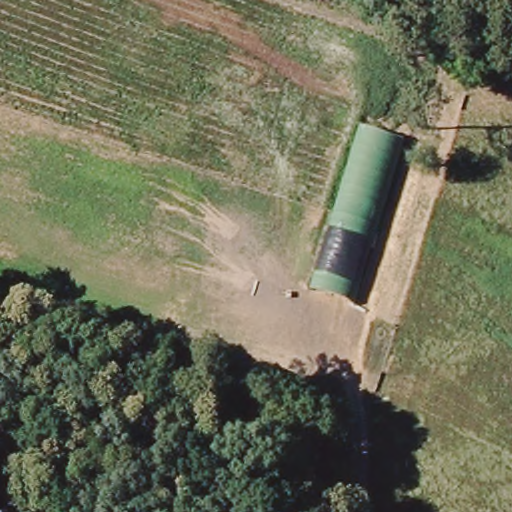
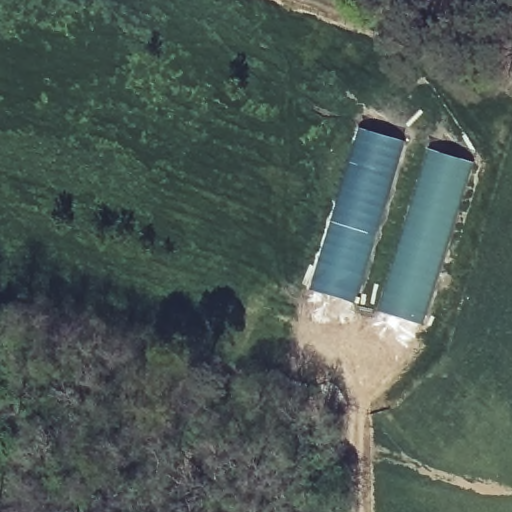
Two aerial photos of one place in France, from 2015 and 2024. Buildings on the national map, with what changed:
unchanged [(366,128),(407,142),(360,304),(314,289),(366,128)]
new [(431,150),(468,163),(420,325),(380,313),(431,150)]

